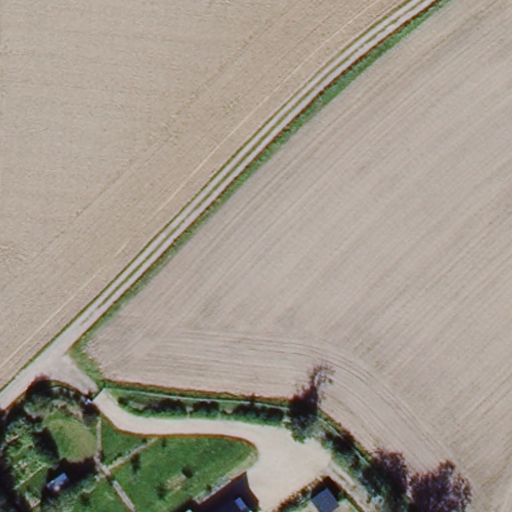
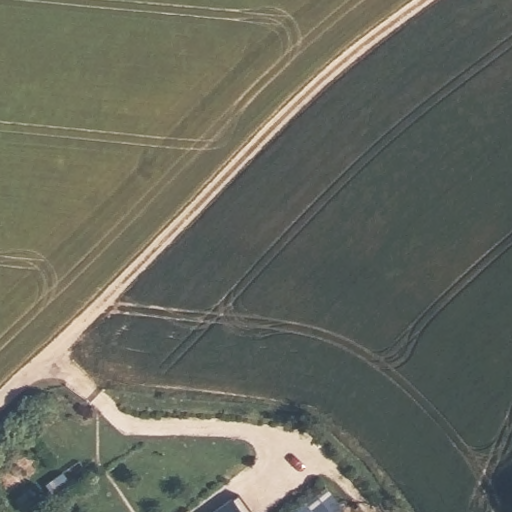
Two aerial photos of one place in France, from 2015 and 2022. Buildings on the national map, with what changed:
unchanged [(239,494),(252,512),(215,512),(239,494)]

